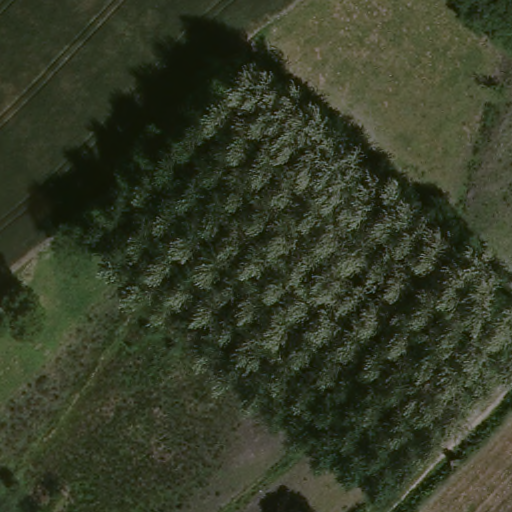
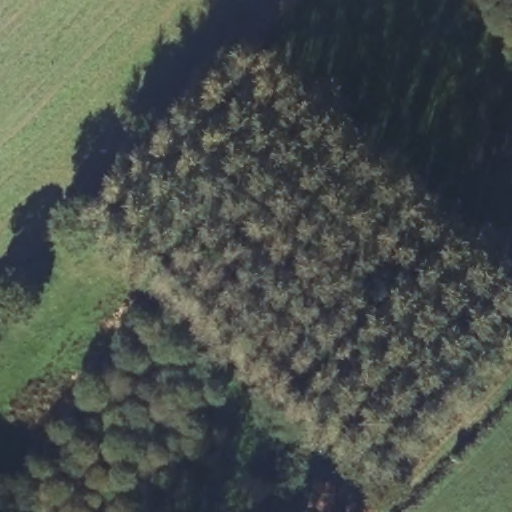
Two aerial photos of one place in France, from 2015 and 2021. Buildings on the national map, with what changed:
[]

